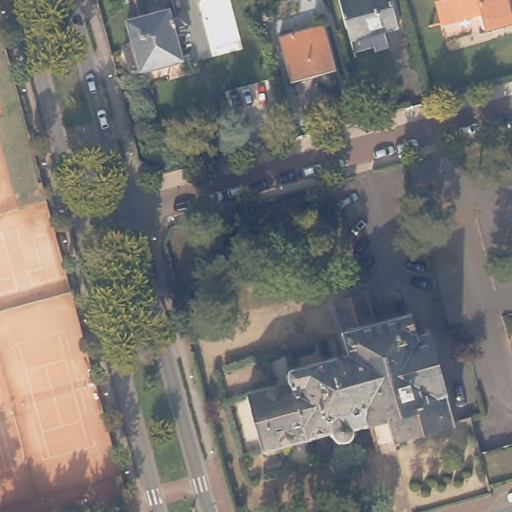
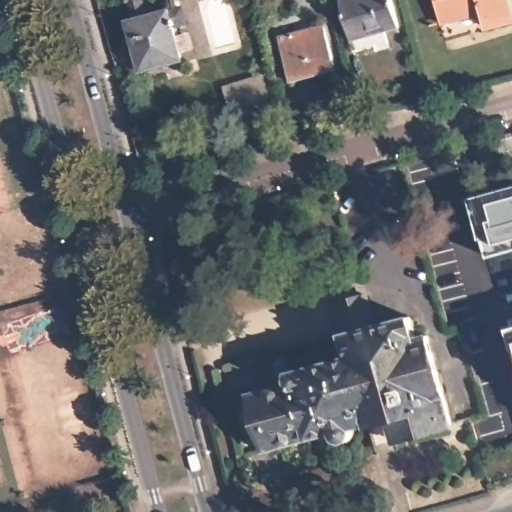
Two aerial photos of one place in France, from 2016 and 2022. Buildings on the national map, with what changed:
unchanged [(141,17),(165,10),(165,12),(177,9),(182,25),(173,27),(181,60),(136,71),(136,68),(126,71),(118,42),(128,39),(123,22),(130,20),(126,1),(123,2),(123,0),(136,0),(141,17)]
unchanged [(399,30),(352,43),(340,1),(344,0),(390,0),(399,30)]
unchanged [(508,13),(483,20),(479,6),(441,16),(436,0),(504,0),(508,13)]
unchanged [(335,74),(289,86),(279,48),(325,36),(335,74)]
new [(489,254),(464,198),(512,184),(512,248),(489,254)]
unchanged [(384,422),(401,417),(400,412),(383,417),(361,423),(361,427),(360,431),(359,435),(356,437),(352,438),(350,438),(347,438),(345,438),(342,437),(339,435),(336,433),(334,430),(276,445),(260,387),(304,377),(301,367),(358,352),(344,299),(375,291),(384,323),(419,313),(426,335),(436,332),(461,418),(406,433),(406,432),(388,437),(384,422)]
unchanged [(509,347),(512,347),(512,358),(509,347)]

